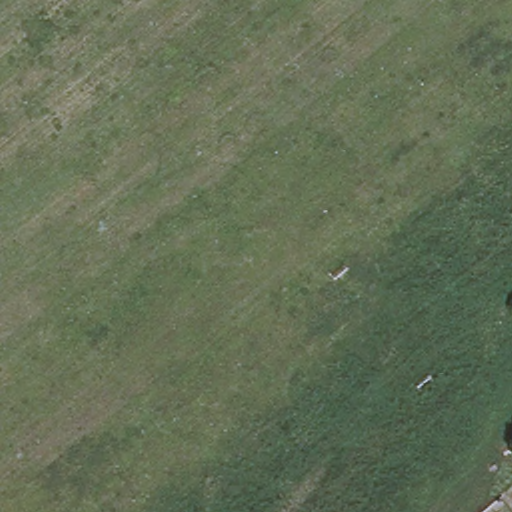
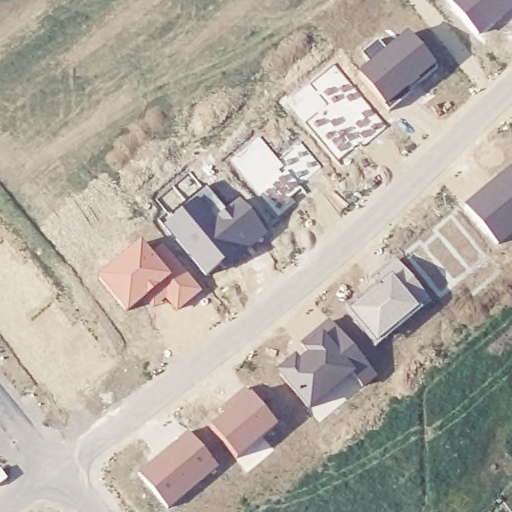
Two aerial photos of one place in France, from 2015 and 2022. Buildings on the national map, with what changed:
new [(480,33),(453,0),(512,0),(512,6),(480,33)]
new [(409,28),(437,63),(387,103),(359,69),(409,28)]
new [(328,105),(310,84),(337,64),(388,126),(363,148),(358,143),(338,162),(306,123),(328,105)]
new [(262,137),(281,161),(302,143),(321,167),(298,186),(305,193),(280,216),(230,163),(262,137)]
new [(512,163),(512,232),(498,243),(465,202),(512,163)]
new [(207,186),(227,210),(242,198),(267,231),(208,278),(161,224),(207,186)]
new [(488,258),(441,295),(406,254),(420,243),(425,246),(438,236),(434,231),(452,217),(488,258)]
new [(140,238),(150,252),(163,245),(200,290),(177,311),(154,287),(127,311),(96,274),(140,238)]
new [(383,279),(380,274),(399,259),(430,299),(377,341),(347,305),(383,279)]
new [(297,352),(300,356),(307,352),(302,341),(331,319),(378,376),(363,388),(352,374),(310,408),(277,368),(297,352)]
unchanged [(457,399),(467,384),(489,397),(481,410),(457,399)]
new [(250,391),(277,421),(237,455),(212,422),(250,391)]
new [(188,431),(218,465),(167,507),(140,471),(188,431)]

